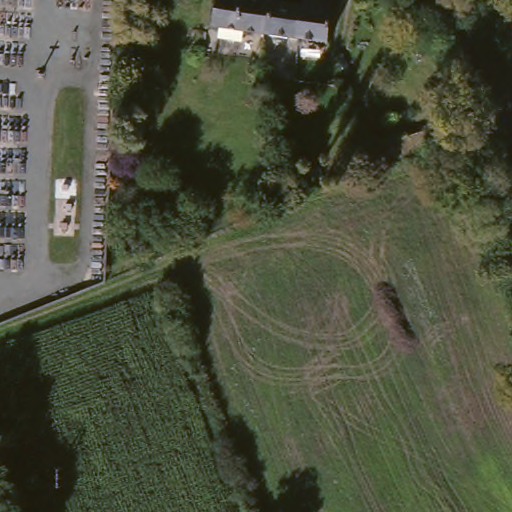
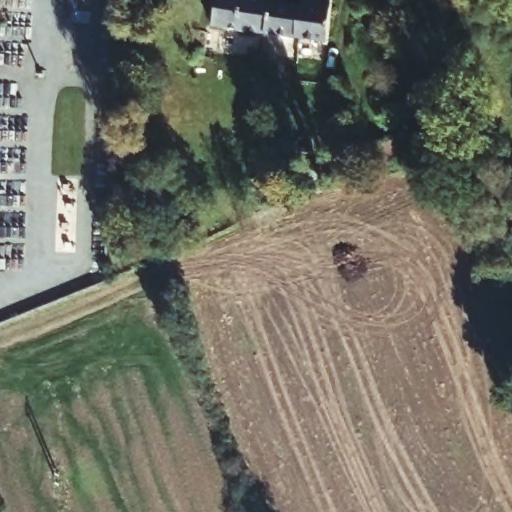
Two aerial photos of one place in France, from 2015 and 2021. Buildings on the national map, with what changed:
unchanged [(218,0),(266,0),(265,4),(268,5),(273,6),(265,39),(213,31),(218,0)]
unchanged [(273,6),(275,0),(300,0),(297,10),(301,11),(299,44),(265,39),(273,6)]
unchanged [(328,47),(299,44),(301,11),(304,0),(332,0),(328,47)]

